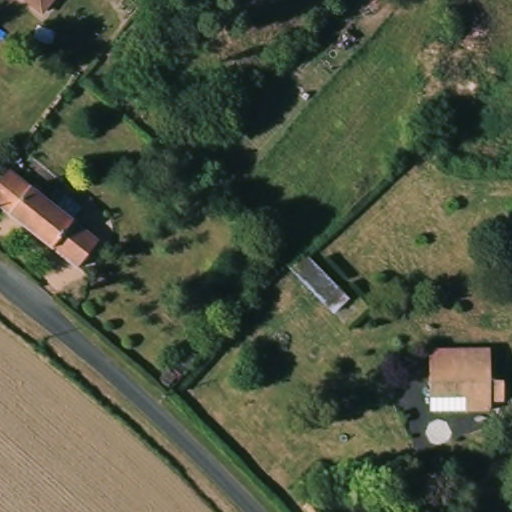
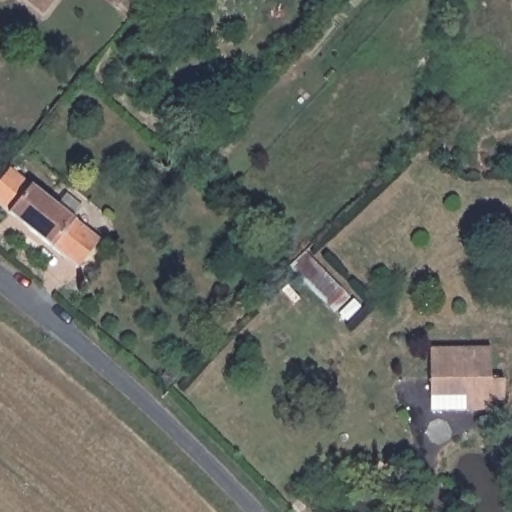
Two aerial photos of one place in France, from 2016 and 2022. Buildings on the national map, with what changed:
unchanged [(55,0),(45,12),(31,0),(55,0)]
unchanged [(0,184),(0,183),(9,173),(52,207),(65,194),(84,209),(71,222),(97,243),(77,268),(0,210),(0,184)]
unchanged [(363,317),(340,335),(290,275),(306,255),(363,317)]
unchanged [(433,401),(433,350),(492,351),(493,389),(506,390),(506,404),(493,405),(493,413),(468,413),(433,413),(433,401)]

